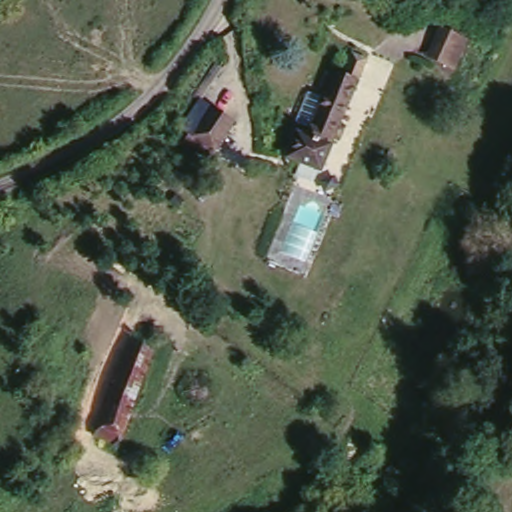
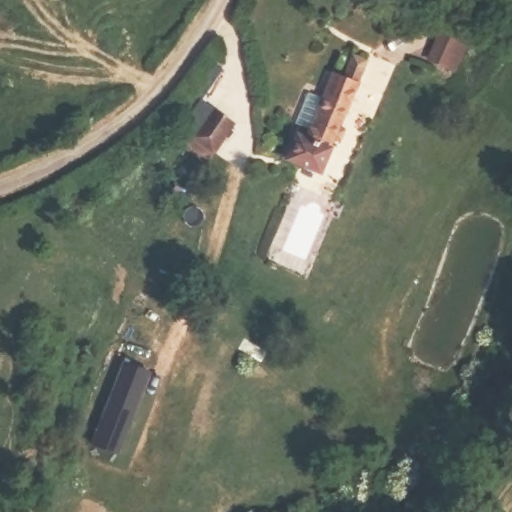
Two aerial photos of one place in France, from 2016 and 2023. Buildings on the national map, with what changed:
unchanged [(440,28),(468,41),(456,72),(427,59),(440,28)]
unchanged [(294,123),(307,93),(324,100),(334,76),(346,80),(354,59),(365,64),(320,170),(289,159),(302,127),(294,123)]
unchanged [(206,99),(229,135),(201,154),(177,117),(206,99)]
unchanged [(127,350),(148,360),(109,450),(88,440),(127,350)]

